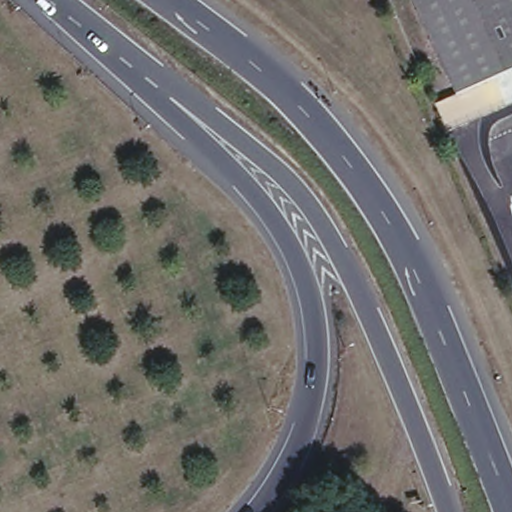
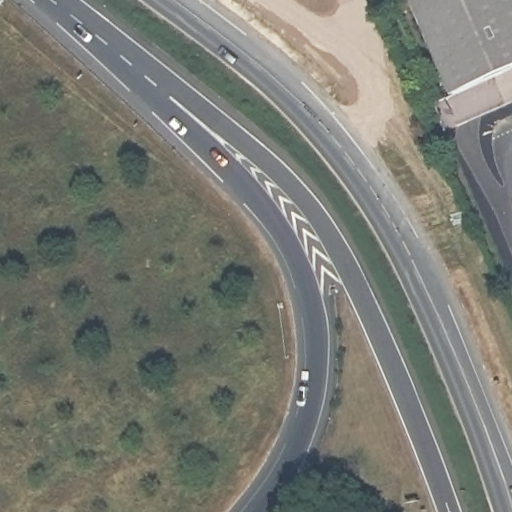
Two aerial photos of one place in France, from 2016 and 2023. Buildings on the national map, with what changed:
unchanged [(421,0),(512,0),(512,68),(461,91),(421,0)]

